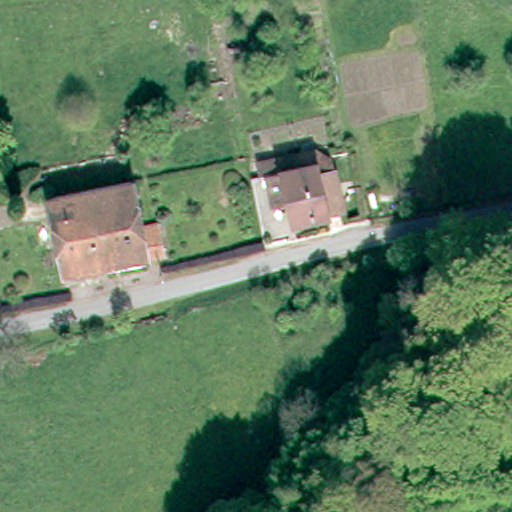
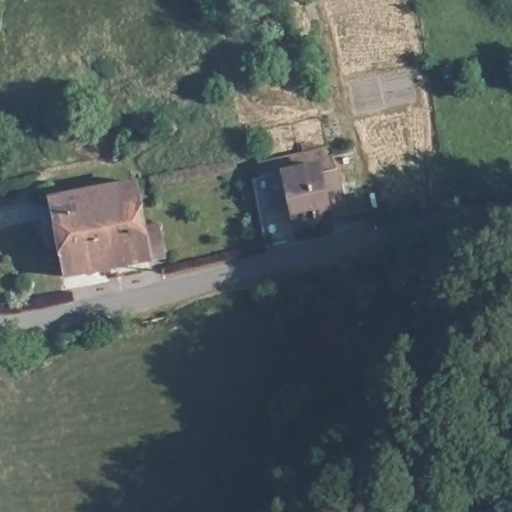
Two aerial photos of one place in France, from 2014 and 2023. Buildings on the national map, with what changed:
unchanged [(271,191),(266,192),(262,177),(278,174),(308,167),(307,159),(319,157),(320,164),(322,164),(337,174),(350,228),(299,238),(295,218),(277,221),(276,214),(271,191)]
unchanged [(149,269),(64,283),(47,194),(130,179),(149,269)]

